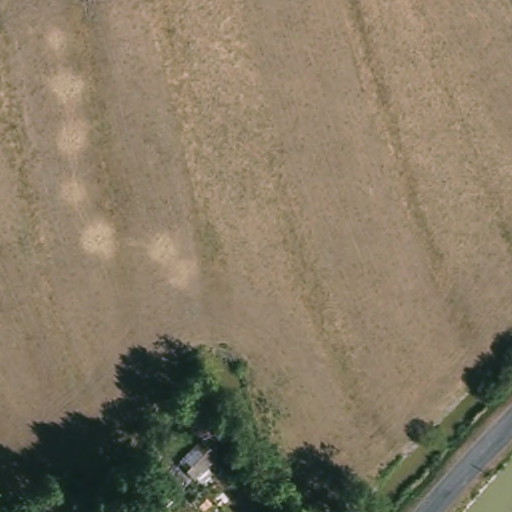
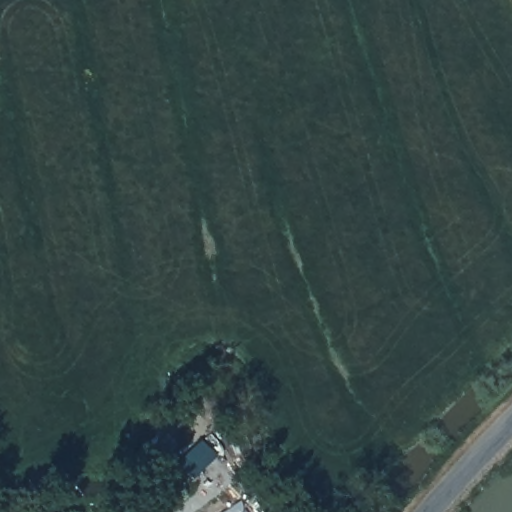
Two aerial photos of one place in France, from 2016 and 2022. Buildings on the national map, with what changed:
unchanged [(165,512),(155,505),(169,488),(160,478),(202,440),(223,459),(167,512),(165,512)]

